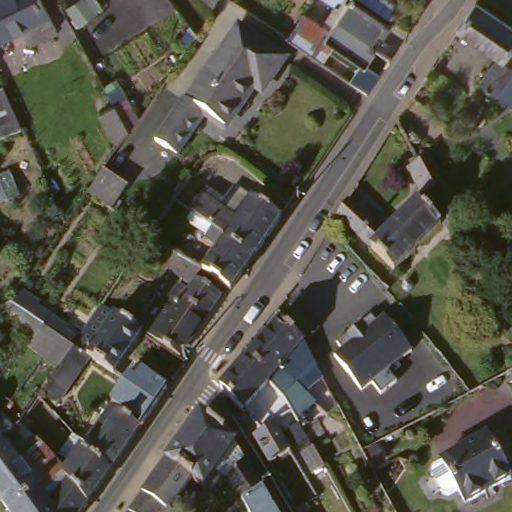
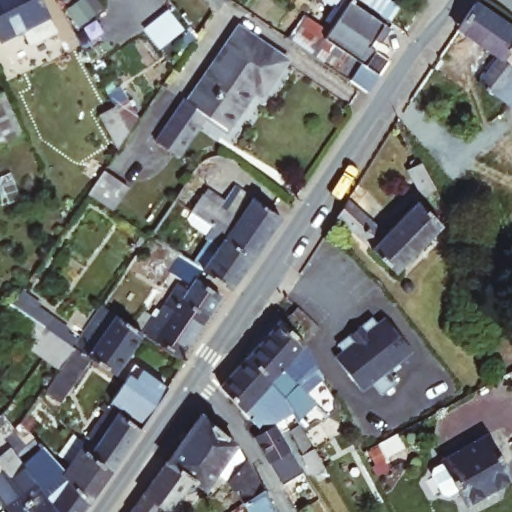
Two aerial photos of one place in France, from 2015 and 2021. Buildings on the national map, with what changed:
unchanged [(31,45),(22,29),(2,38),(0,36),(0,0),(44,0),(60,31),(31,45)]
unchanged [(393,63),(372,97),(288,42),(266,28),(273,15),(289,24),(293,18),(301,22),(300,24),(321,37),(337,12),(319,0),(353,0),(388,23),(372,50),(393,63)]
unchanged [(412,34),(360,0),(395,0),(422,17),(412,34)]
unchanged [(482,85),(498,61),(458,32),(477,3),(512,27),(512,104),(511,105),(482,85)]
unchanged [(211,120),(185,161),(162,146),(188,106),(191,107),(239,30),(277,54),(287,61),(266,94),(260,90),(231,133),(225,130),(211,120)]
unchanged [(5,94),(26,134),(4,145),(0,139),(0,96),(5,94)]
unchanged [(119,148),(100,115),(115,107),(130,132),(119,148)]
unchanged [(441,186),(430,192),(417,168),(428,162),(441,186)]
unchanged [(105,168),(137,191),(121,217),(87,194),(105,168)]
unchanged [(202,270),(225,231),(192,210),(209,184),(242,205),(252,190),(283,209),(230,290),(202,270)]
unchanged [(392,234),(426,203),(446,225),(399,270),(342,212),(352,195),(392,234)]
unchanged [(467,235),(458,242),(450,231),(460,222),(467,235)]
unchanged [(131,322),(140,309),(159,320),(180,290),(187,294),(196,282),(222,300),(185,357),(143,330),(131,322)]
unchanged [(117,376),(96,365),(79,386),(74,383),(61,402),(43,391),(59,364),(31,344),(35,338),(10,321),(28,293),(54,309),(50,319),(77,338),(75,349),(86,356),(114,313),(141,332),(117,376)]
unchanged [(321,323),(311,335),(290,318),(300,306),(321,323)]
unchanged [(383,369),(392,381),(376,393),(367,381),(357,389),(330,355),(337,349),(332,342),(367,315),(372,322),(380,316),(407,350),(383,369)]
unchanged [(248,359),(282,319),(307,342),(317,364),(319,367),(310,371),(306,365),(303,367),(293,351),(268,379),(248,359)]
unchanged [(268,379),(293,351),(303,367),(306,365),(310,371),(319,367),(325,379),(303,398),(312,407),(303,417),(294,426),(323,475),(312,481),(279,424),(290,414),(264,385),(268,379)]
unchanged [(222,388),(248,359),(268,379),(264,385),(244,408),(240,405),(222,388)]
unchanged [(116,408),(114,407),(115,406),(129,385),(132,388),(142,375),(172,396),(168,401),(163,408),(147,430),(116,408)]
unchanged [(49,400),(45,406),(37,398),(42,392),(49,400)]
unchanged [(85,449),(116,408),(147,430),(120,464),(114,472),(85,449)]
unchanged [(248,507),(228,494),(216,485),(212,490),(203,482),(177,461),(206,418),(241,448),(265,487),(268,493),(248,507)]
unchanged [(25,427),(30,421),(37,428),(32,436),(25,427)]
unchanged [(273,421),(293,454),(274,464),(255,431),(273,421)]
unchanged [(0,497),(0,434),(15,455),(21,462),(28,456),(40,446),(55,466),(65,476),(40,492),(48,504),(53,512),(10,512),(0,497)]
unchanged [(492,440),(498,454),(512,481),(512,484),(471,504),(463,490),(452,496),(448,495),(437,473),(438,469),(450,464),(448,461),(492,440)]
unchanged [(65,476),(85,449),(114,472),(92,501),(70,480),(65,476)]
unchanged [(203,482),(194,494),(181,512),(140,512),(159,486),(177,461),(203,482)]
unchanged [(60,491),(70,480),(92,501),(83,512),(53,512),(48,504),(60,491)]
unchanged [(248,507),(268,493),(280,512),(251,512),(250,509),(248,507)]

